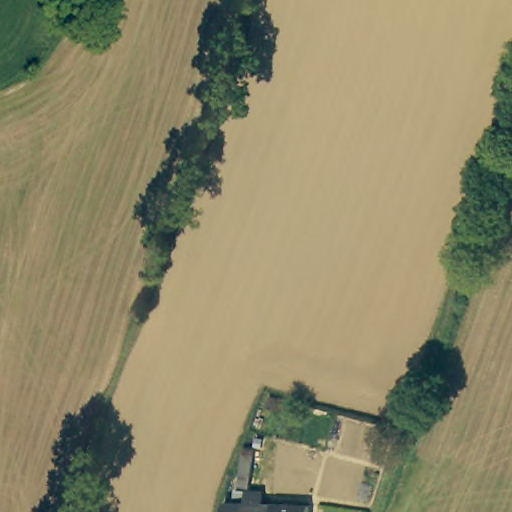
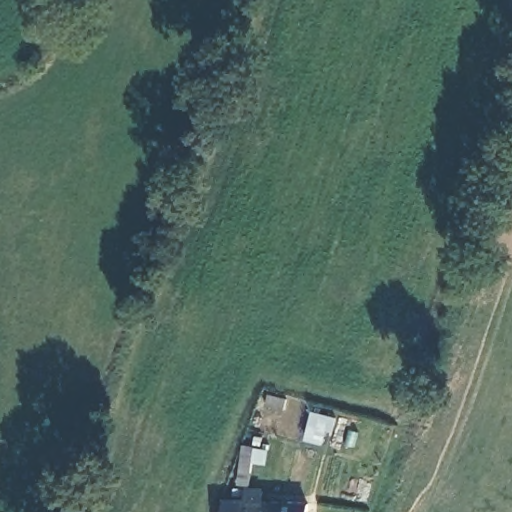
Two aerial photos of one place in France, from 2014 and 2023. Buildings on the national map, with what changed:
unchanged [(307,512),(220,512),(220,501),(239,501),(240,487),(256,488),(256,502),(308,502),(307,512)]

